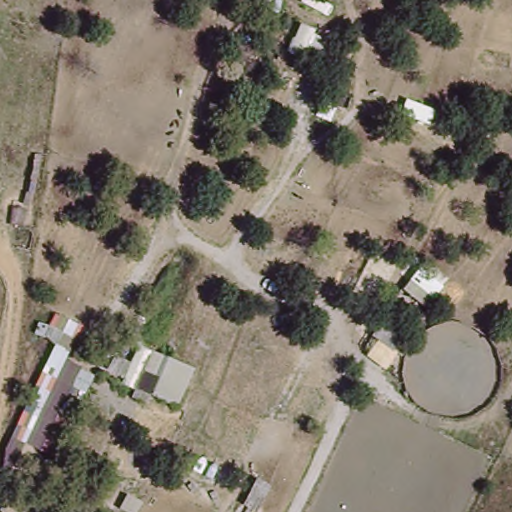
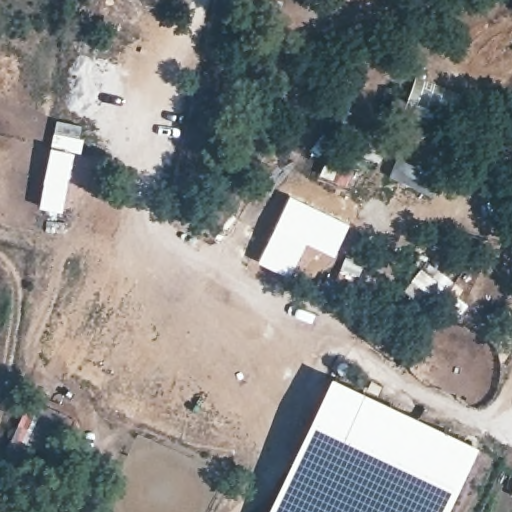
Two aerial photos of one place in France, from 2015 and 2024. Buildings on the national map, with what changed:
new [(330,146),(359,158),(348,186),(318,174),(330,146)]
new [(324,286),(263,261),(288,194),(351,222),(324,286)]
new [(451,277),(431,310),(404,291),(426,260),(451,277)]
demolished [(133,366),(124,362),(135,338),(198,365),(181,405),(125,382),(133,366)]
demolished [(39,400),(36,398),(48,372),(43,370),(58,340),(75,348),(28,445),(20,440),(39,400)]
new [(479,443),(446,512),(266,512),(331,374),(479,443)]

